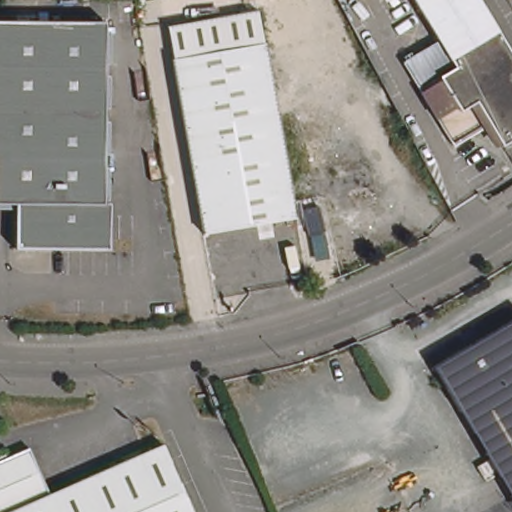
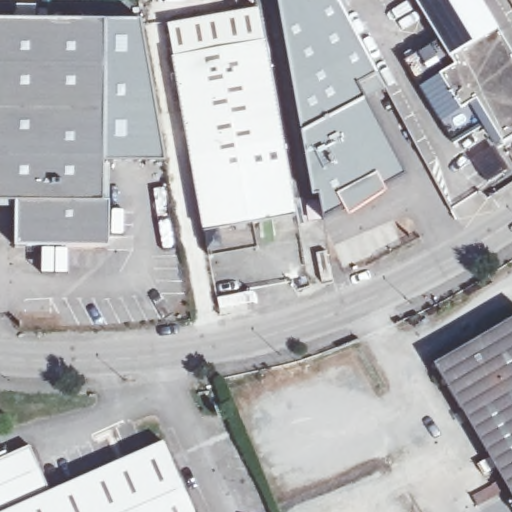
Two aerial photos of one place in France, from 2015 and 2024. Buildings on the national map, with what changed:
new [(318,192),(312,193),(277,0),(336,0),(382,83),(363,93),(407,172),(383,185),(385,188),(348,213),(344,206),(322,217),(318,192)]
unchanged [(415,75),(407,60),(427,48),(442,38),(420,0),(485,0),(512,45),(512,139),(505,144),(492,123),(477,131),(455,143),(449,132),(435,109),(415,75)]
unchanged [(173,26),(263,11),(267,36),(269,44),(179,59),(173,26)]
unchanged [(106,21),(104,161),(104,203),(105,203),(105,250),(15,248),(16,203),(0,203),(0,20),(106,21)]
new [(106,21),(140,21),(165,161),(104,161),(106,21)]
unchanged [(269,44),(295,182),(300,209),(301,218),(209,234),(179,59),(269,44)]
unchanged [(512,323),(512,495),(438,367),(512,323)]
unchanged [(35,450),(55,497),(105,476),(169,447),(197,512),(0,512),(0,464),(35,450)]

